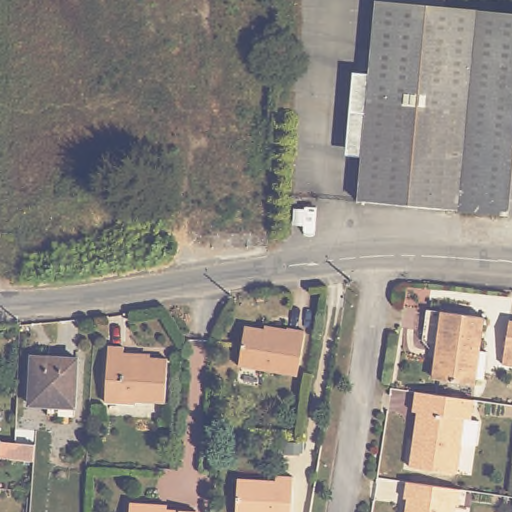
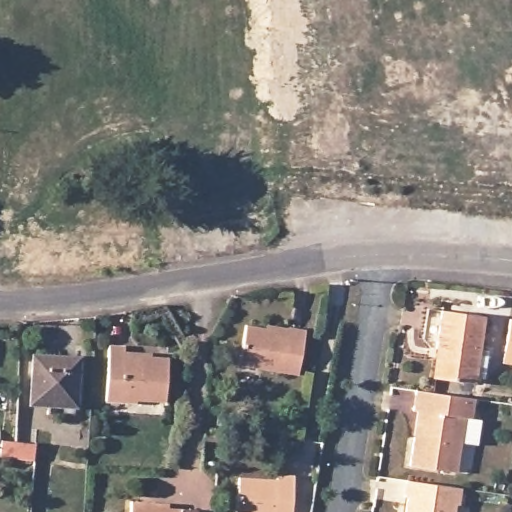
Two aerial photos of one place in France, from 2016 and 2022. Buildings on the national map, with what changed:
demolished [(375,0),(441,0),(441,4),(512,10),(512,210),(358,197),(362,152),(369,69),(375,11),(375,0)]
unchanged [(485,379),(445,374),(449,344),(445,344),(446,336),(432,335),(436,304),(494,312),(485,379)]
unchanged [(507,353),(509,341),(512,319),(512,353),(507,353)]
unchanged [(297,376),(238,366),(245,326),(286,333),(287,328),(305,331),(297,376)]
unchanged [(108,346),(124,347),(123,356),(167,358),(165,402),(135,401),(135,403),(105,402),(108,346)]
unchanged [(74,412),(46,410),(47,400),(29,399),(31,351),(76,354),(74,401),(74,412)]
unchanged [(414,457),(418,428),(421,426),(425,402),(417,401),(420,381),(478,390),(475,409),(483,411),(480,435),(465,433),(461,464),(414,457)]
unchanged [(0,442),(15,443),(16,429),(35,431),(34,445),(32,461),(0,458),(0,442)]
unchanged [(238,478),(276,480),(276,475),(293,476),(291,512),(235,512),(238,478)]
unchanged [(412,493),(409,493),(411,476),(464,484),(462,501),(460,500),(458,512),(409,512),(412,493)]
unchanged [(19,493),(17,512),(7,512),(9,492),(19,493)]
unchanged [(129,502),(166,504),(166,512),(129,512),(129,502)]
unchanged [(174,509),(195,510),(194,512),(173,512),(174,509)]

